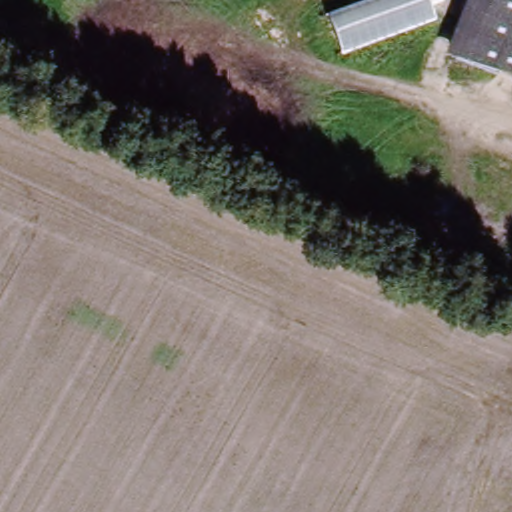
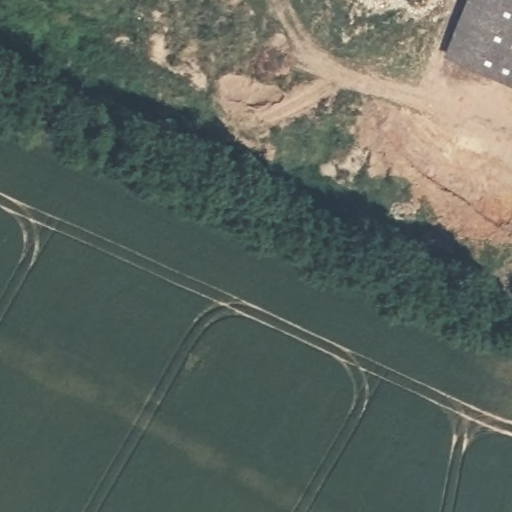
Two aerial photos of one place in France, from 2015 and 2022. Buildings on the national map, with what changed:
demolished [(427,0),(436,20),(341,58),(333,21),(387,0),(427,0)]
unchanged [(486,0),(512,0),(512,84),(461,63),(486,0)]

